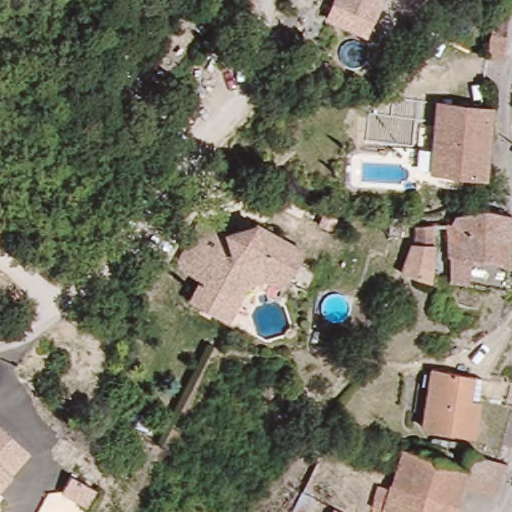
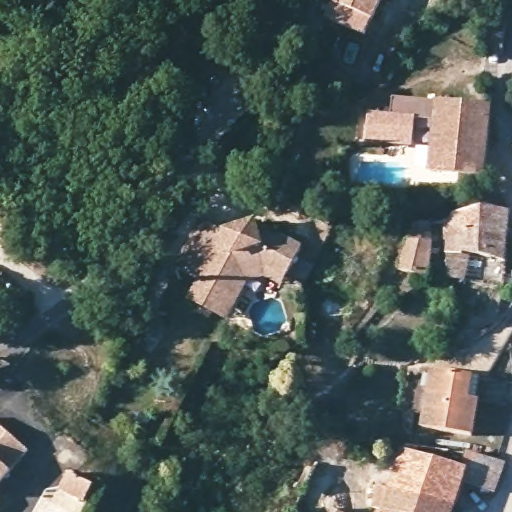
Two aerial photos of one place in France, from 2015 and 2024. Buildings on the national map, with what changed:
unchanged [(332,0),(378,0),(366,21),(332,0)]
unchanged [(504,53),(484,51),(487,18),(493,19),(494,8),(508,16),(504,53)]
unchanged [(191,76),(206,87),(199,98),(181,82),(191,76)]
new [(436,120),(416,118),(413,144),(366,139),(369,112),(392,114),(394,96),(422,99),(423,93),(439,94),(438,100),(436,120)]
unchanged [(429,178),(431,167),(436,120),(438,100),(492,104),(484,172),(457,170),(457,180),(429,178)]
unchanged [(451,210),(456,199),(493,188),(494,184),(512,182),(512,192),(509,243),(506,268),(504,276),(467,272),(442,269),(443,240),(444,210),(451,210)]
unchanged [(193,296),(206,276),(179,262),(205,220),(231,232),(259,223),(302,247),(289,274),(267,266),(243,275),(232,290),(241,295),(228,317),(193,296)]
unchanged [(409,239),(413,220),(426,220),(429,239),(424,276),(397,269),(409,239)]
unchanged [(463,372),(473,373),(473,379),(472,396),(469,433),(419,430),(421,399),(422,369),(463,372)]
unchanged [(6,438),(13,445),(26,454),(8,477),(0,470),(0,433),(6,438)]
unchanged [(461,483),(454,504),(393,484),(404,447),(425,453),(429,445),(449,448),(446,460),(467,468),(461,483)]
unchanged [(467,468),(472,454),(508,467),(496,496),(461,483),(467,468)]
unchanged [(8,477),(0,486),(0,470),(8,477)]
unchanged [(391,489),(393,484),(454,504),(452,512),(370,512),(378,485),(391,489)]
unchanged [(330,512),(334,506),(343,512),(330,512)]

